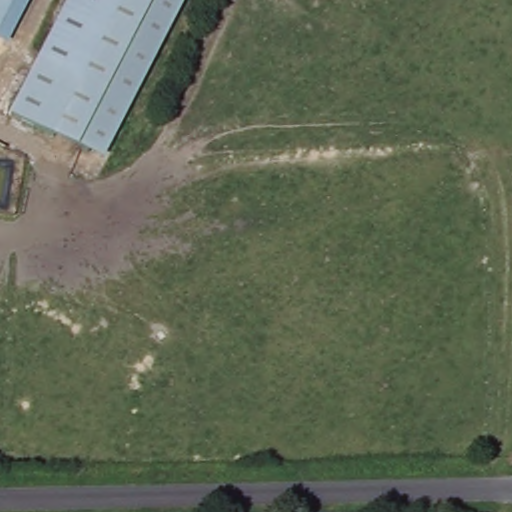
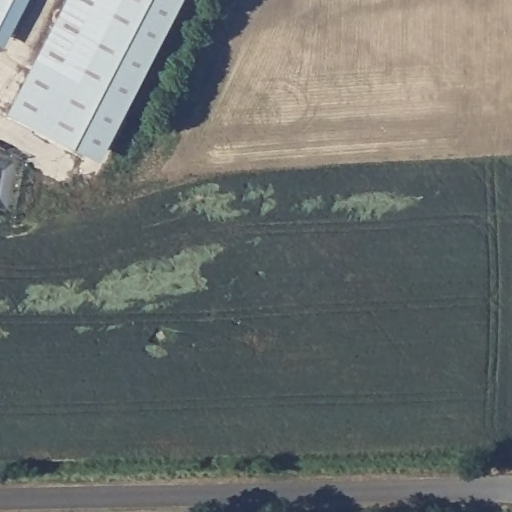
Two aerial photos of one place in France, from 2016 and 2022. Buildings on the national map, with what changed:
unchanged [(0,32),(0,0),(17,0),(0,32)]
unchanged [(9,114),(68,0),(187,0),(106,160),(9,114)]

